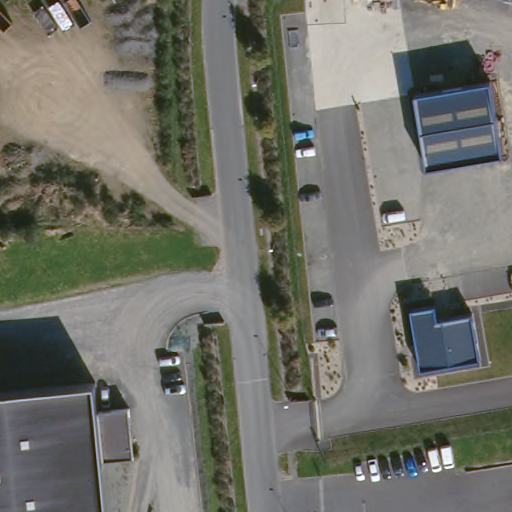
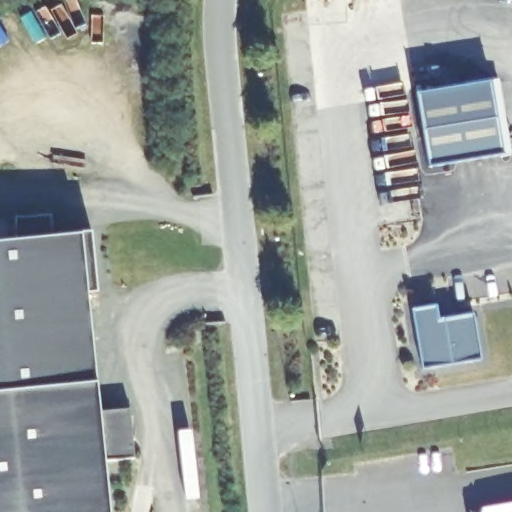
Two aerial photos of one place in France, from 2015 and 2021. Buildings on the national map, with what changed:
unchanged [(416,90),(490,80),(504,151),(426,165),(416,90)]
new [(15,240),(14,219),(50,216),(51,236),(79,233),(90,231),(97,290),(86,291),(94,382),(0,391),(0,242),(15,240)]
unchanged [(408,303),(431,302),(433,324),(472,315),(480,356),(420,367),(408,303)]
unchanged [(94,382),(99,415),(124,412),(132,461),(102,465),(106,512),(0,512),(0,391),(94,382)]

